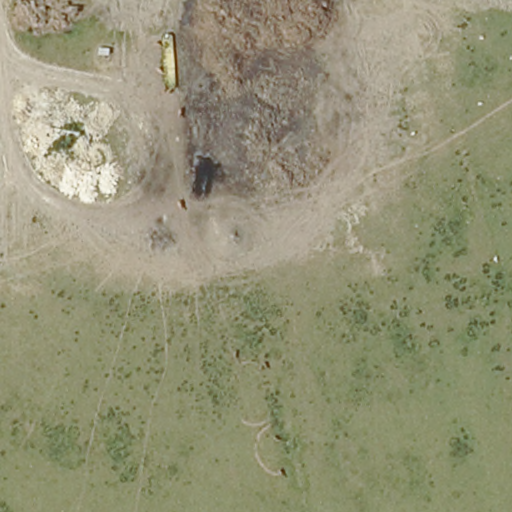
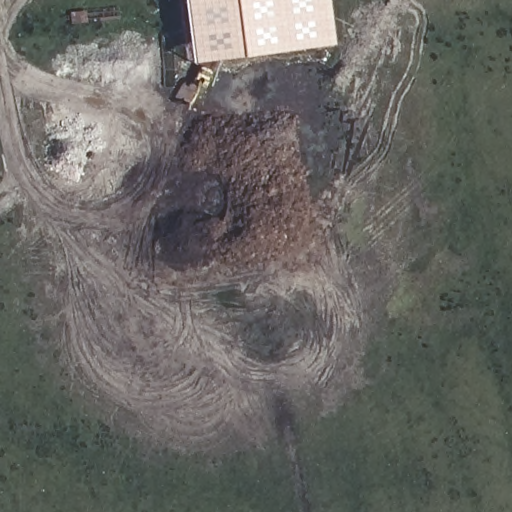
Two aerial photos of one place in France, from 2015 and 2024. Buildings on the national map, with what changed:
new [(192,63),(184,0),(327,0),(332,44),(192,63)]
demolished [(113,32),(110,6),(157,2),(160,30),(113,32)]

